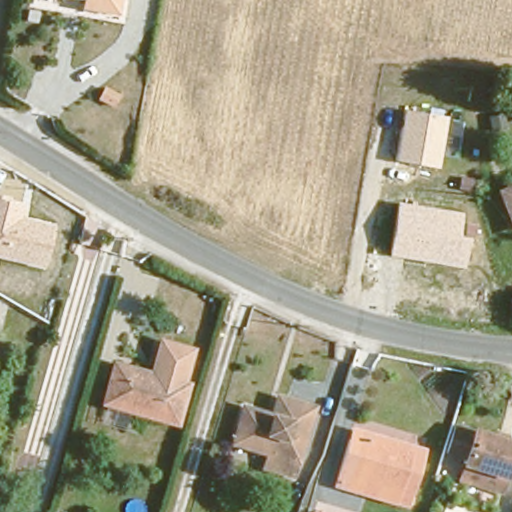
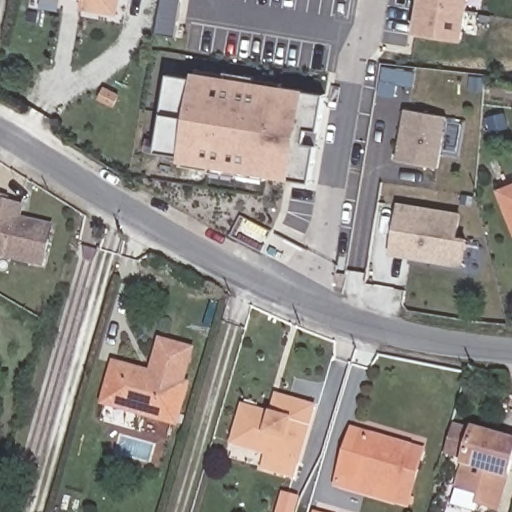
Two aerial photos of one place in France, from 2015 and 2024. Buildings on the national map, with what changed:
unchanged [(81,0),(114,0),(113,5),(81,0)]
new [(162,0),(182,0),(175,37),(156,33),(162,0)]
new [(418,0),(467,0),(460,41),(413,34),(418,0)]
new [(397,68),(416,71),(413,90),(394,87),(393,96),(379,94),(383,66),(397,68)]
new [(264,173),(264,178),(236,173),(235,175),(206,170),(206,169),(178,164),(180,155),(153,151),(162,81),(164,81),(165,71),(193,75),(193,67),(222,70),(222,68),(251,72),(251,73),(280,77),(279,86),(300,88),(323,91),(321,100),(310,172),(308,180),(287,177),(264,173)]
unchanged [(439,167),(396,160),(404,109),(448,116),(439,167)]
unchanged [(508,214),(498,186),(512,181),(512,224),(508,214)]
unchanged [(0,257),(0,195),(10,197),(8,201),(26,204),(23,218),(55,225),(45,267),(0,257)]
unchanged [(459,235),(470,237),(465,267),(389,256),(398,203),(462,212),(459,235)]
unchanged [(158,337),(196,347),(187,381),(150,368),(158,337)]
unchanged [(114,355),(150,368),(187,381),(175,418),(102,393),(114,355)]
unchanged [(270,463),(273,451),(235,439),(246,399),(275,408),(279,392),(315,402),(296,472),(270,463)]
unchanged [(463,447),(444,442),(450,419),(512,437),(512,486),(461,469),(463,447)]
unchanged [(409,488),(334,468),(342,439),(345,427),(364,432),(431,451),(417,505),(406,503),(409,488)]
unchanged [(409,488),(406,503),(330,482),(334,468),(409,488)]
new [(297,497),(292,512),(276,512),(281,492),(297,497)]

